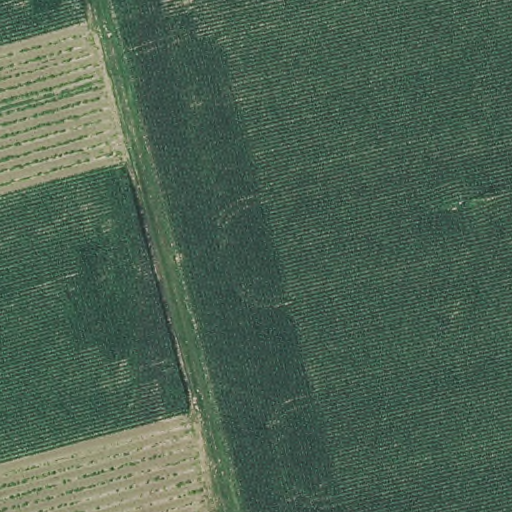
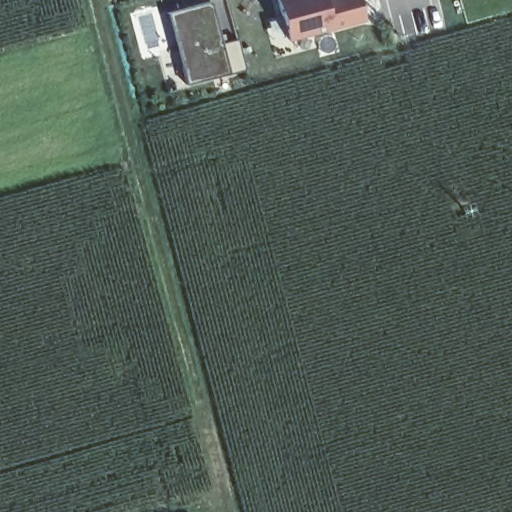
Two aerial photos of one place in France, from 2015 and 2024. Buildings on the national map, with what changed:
new [(168,11),(212,0),(222,41),(238,38),(246,69),(187,84),(168,11)]
new [(288,40),(277,0),(360,0),(365,20),(288,40)]

